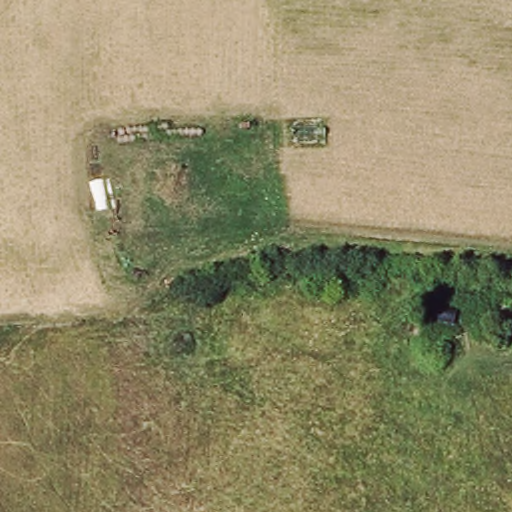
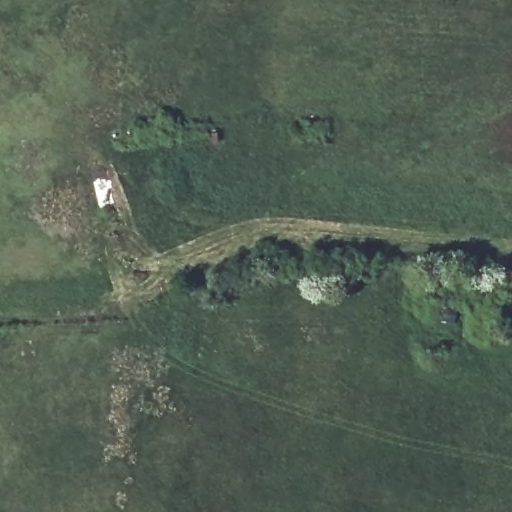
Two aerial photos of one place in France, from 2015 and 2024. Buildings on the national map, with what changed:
unchanged [(481,344),(410,334),(415,304),(485,314),(481,344)]

